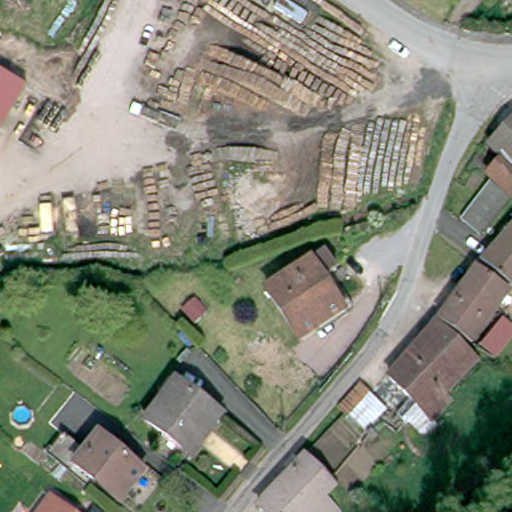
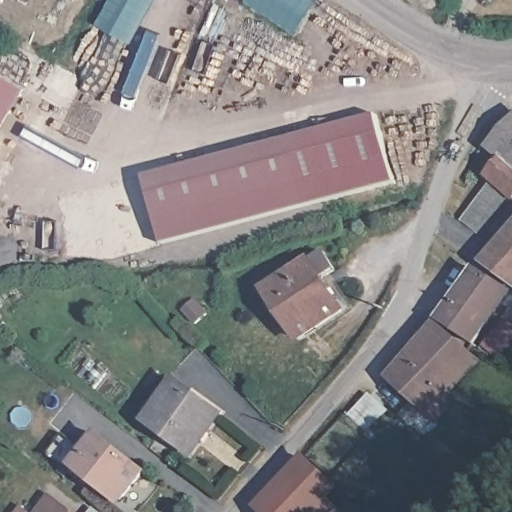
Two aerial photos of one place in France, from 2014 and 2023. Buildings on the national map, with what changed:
new [(131,44),(95,25),(109,0),(154,0),(131,44)]
new [(318,0),(295,35),(244,2),(245,0),(318,0)]
unchanged [(0,137),(0,70),(30,87),(0,137)]
new [(308,206),(292,137),(377,115),(395,182),(308,206)]
unchanged [(490,170),(503,152),(490,141),(512,118),(512,195),(511,196),(510,195),(485,228),(466,215),(496,176),(490,170)]
new [(292,137),(308,206),(161,244),(145,176),(292,137)]
unchanged [(487,263),(512,233),(512,279),(497,271),(487,263)]
unchanged [(265,291),(320,255),(327,266),(317,273),(344,312),(298,343),(265,291)]
unchanged [(481,271),(512,291),(512,295),(477,341),(445,320),(481,271)]
new [(512,327),(512,337),(495,357),(482,345),(503,320),(512,327)]
unchanged [(435,345),(443,337),(438,333),(445,326),(480,361),(430,410),(425,405),(410,419),(396,404),(410,390),(396,377),(432,341),(435,345)]
unchanged [(208,436),(203,432),(198,439),(203,442),(192,457),(145,422),(175,381),(223,416),(208,436)]
unchanged [(390,410),(367,435),(350,419),(373,393),(390,410)]
unchanged [(119,501),(95,480),(93,482),(75,466),(97,440),(140,477),(119,501)]
unchanged [(326,512),(261,512),(305,466),(335,496),(322,509),(326,512)]
unchanged [(73,512),(38,512),(50,495),(73,512)]

